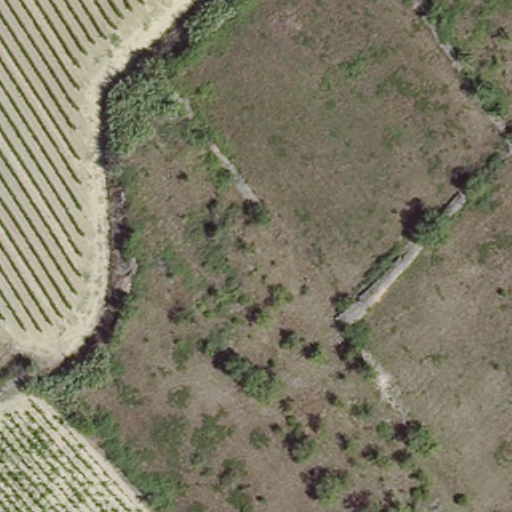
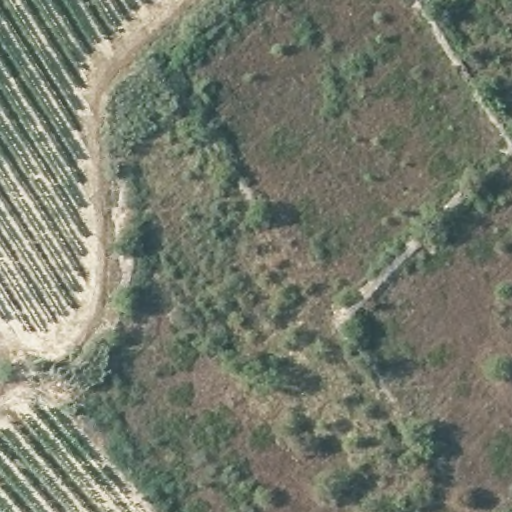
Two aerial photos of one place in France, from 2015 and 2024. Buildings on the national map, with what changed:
[]

